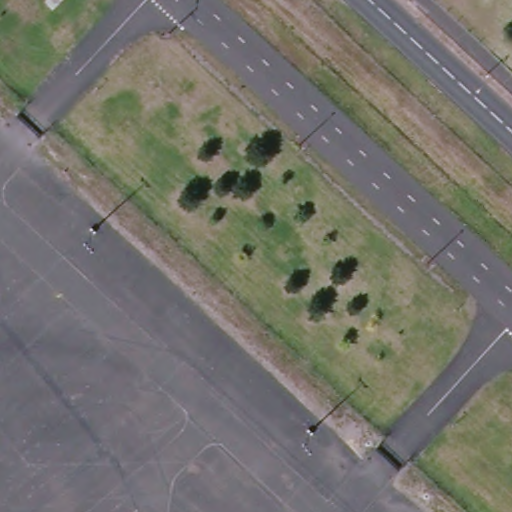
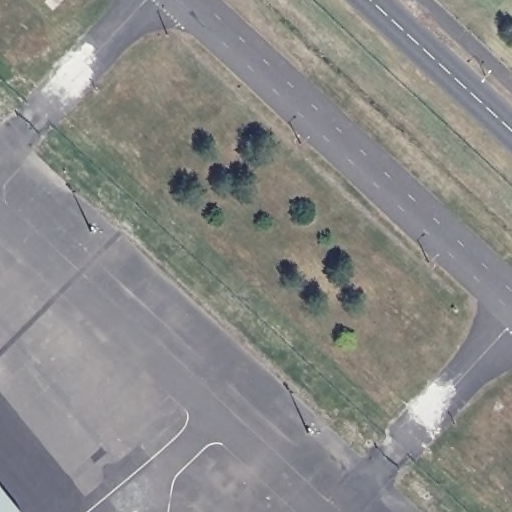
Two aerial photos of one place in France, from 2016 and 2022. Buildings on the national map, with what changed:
new [(0,512),(0,487),(20,512),(0,512)]

